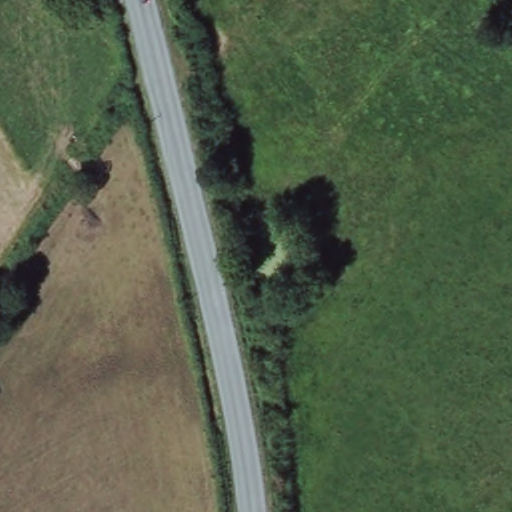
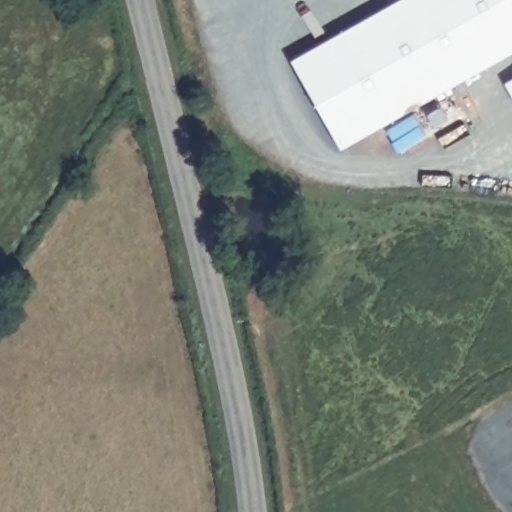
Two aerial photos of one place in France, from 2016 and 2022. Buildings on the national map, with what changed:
new [(512,47),(336,142),(288,53),(387,0),(512,0),(512,47)]

